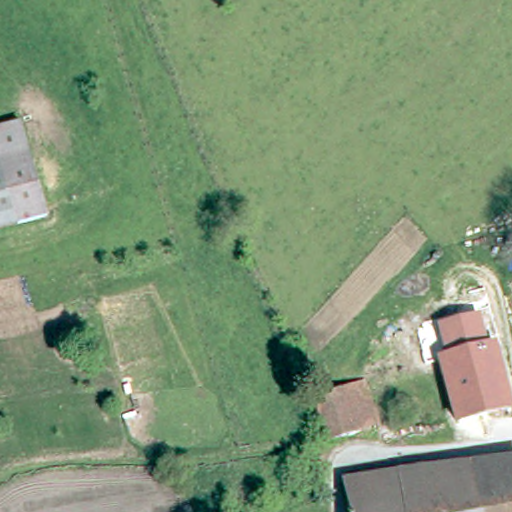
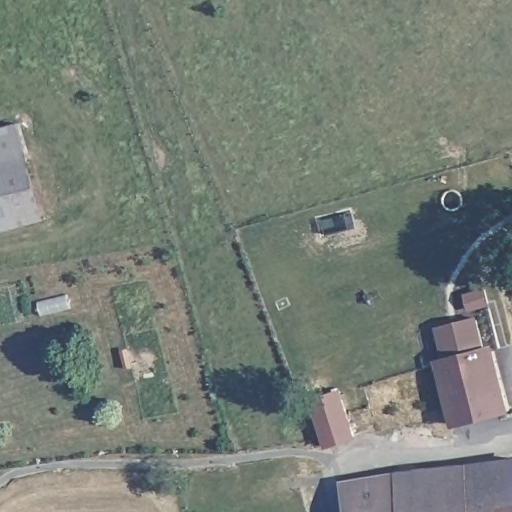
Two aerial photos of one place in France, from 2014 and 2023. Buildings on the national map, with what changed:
unchanged [(0,158),(0,125),(21,119),(45,219),(16,226),(0,158)]
unchanged [(0,158),(16,226),(0,230),(0,158)]
unchanged [(441,358),(429,304),(478,293),(490,349),(441,358)]
unchanged [(508,414),(451,427),(436,359),(441,358),(490,349),(493,348),(508,414)]
unchanged [(321,445),(317,438),(302,397),(331,388),(349,436),(321,445)]
unchanged [(412,423),(414,439),(381,449),(376,429),(379,428),(412,423)]
unchanged [(299,471),(296,461),(308,459),(309,469),(299,471)]
unchanged [(512,462),(512,512),(478,512),(468,467),(512,462)]
unchanged [(397,477),(468,467),(478,512),(403,512),(397,477)]
unchanged [(341,484),(397,477),(403,512),(348,512),(341,484)]

